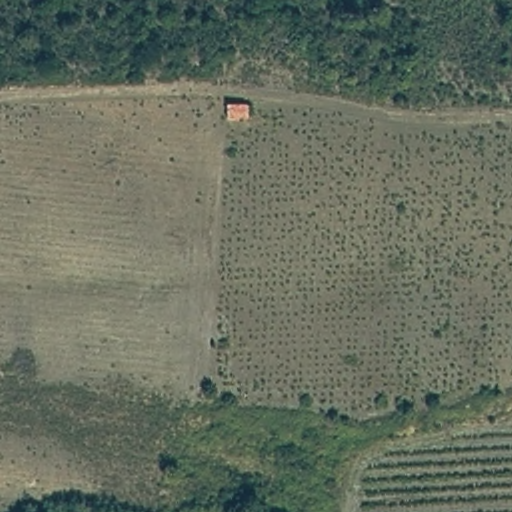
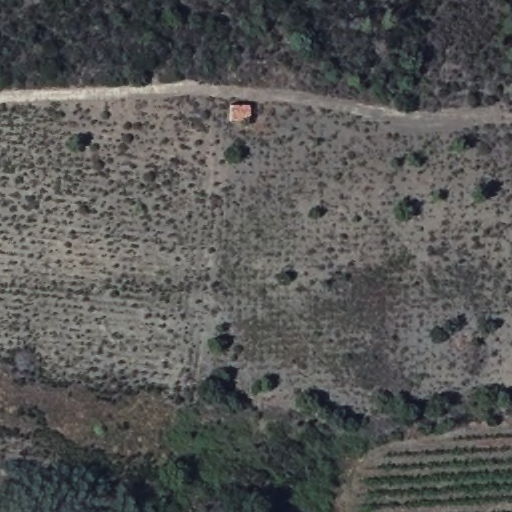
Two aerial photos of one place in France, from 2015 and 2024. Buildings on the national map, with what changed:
unchanged [(228,106),(250,104),(251,117),(227,119),(228,106)]

